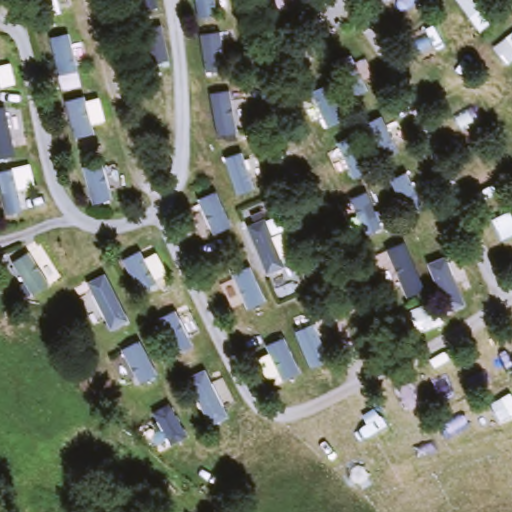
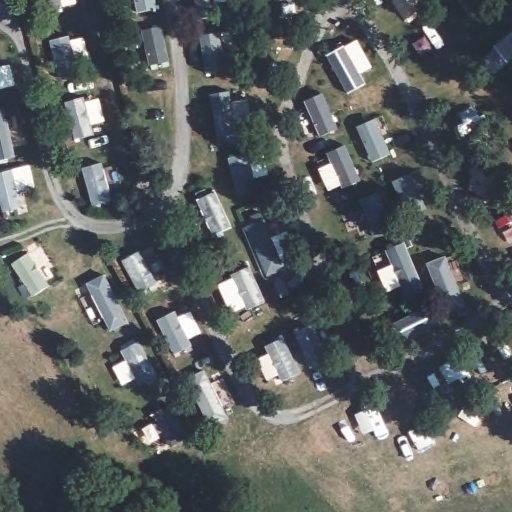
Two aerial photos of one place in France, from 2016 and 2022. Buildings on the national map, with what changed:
unchanged [(135,39),(167,32),(170,51),(175,71),(142,77),(135,39)]

